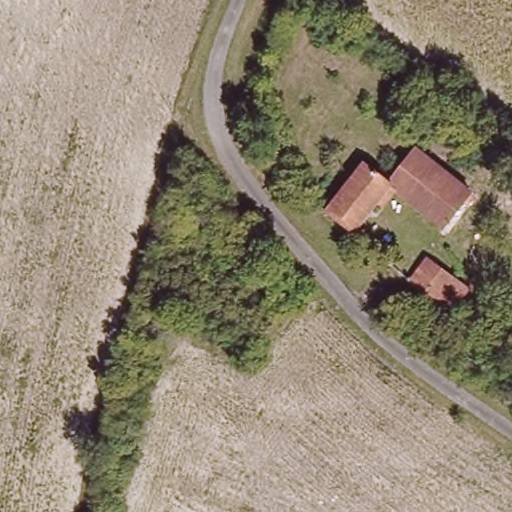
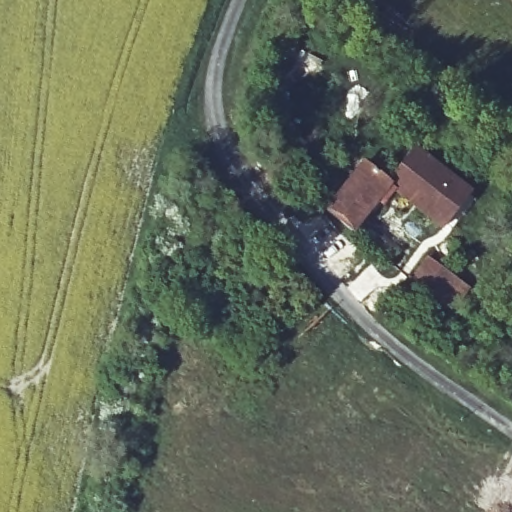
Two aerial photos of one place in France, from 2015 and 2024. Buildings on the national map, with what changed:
unchanged [(387,179),(412,145),(468,185),(443,221),(387,179)]
unchanged [(352,228),(327,208),(363,160),(387,179),(352,228)]
unchanged [(408,280),(420,262),(450,285),(455,279),(466,289),(449,312),(408,280)]

